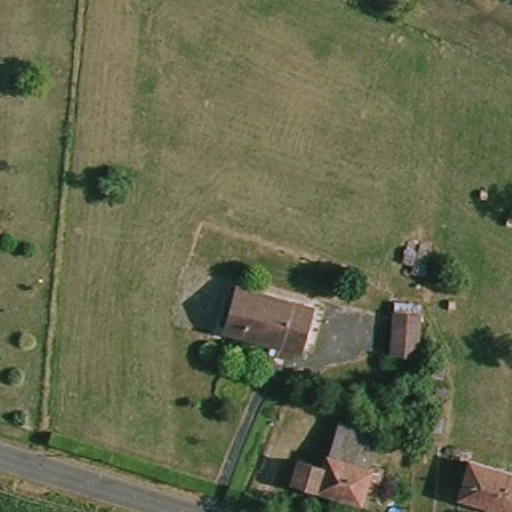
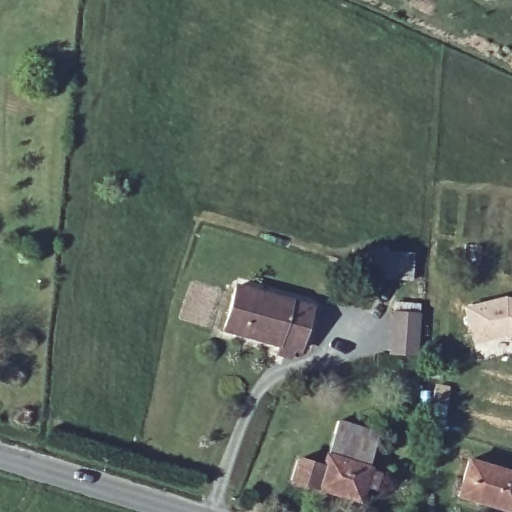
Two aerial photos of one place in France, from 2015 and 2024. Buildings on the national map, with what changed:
unchanged [(263,336),(227,326),(239,284),(295,299),(313,304),(304,338),(302,346),(263,336)]
new [(512,299),(512,334),(504,331),(473,338),(465,308),(505,297),(512,299)]
unchanged [(419,303),(417,336),(398,335),(398,301),(419,303)]
unchanged [(380,429),(363,501),(295,485),(302,458),(328,464),(339,420),(380,429)]
unchanged [(512,506),(463,492),(471,462),(512,473),(512,506)]

